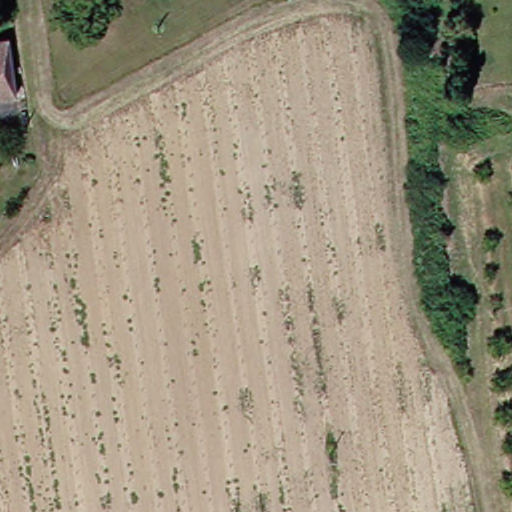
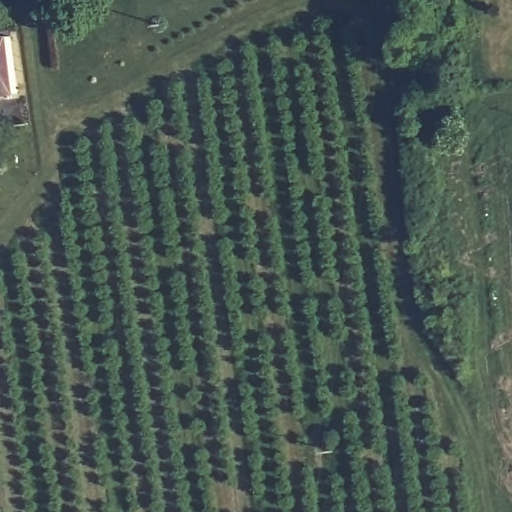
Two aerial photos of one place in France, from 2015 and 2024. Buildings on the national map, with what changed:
unchanged [(0,102),(0,43),(7,42),(13,100),(0,102)]

